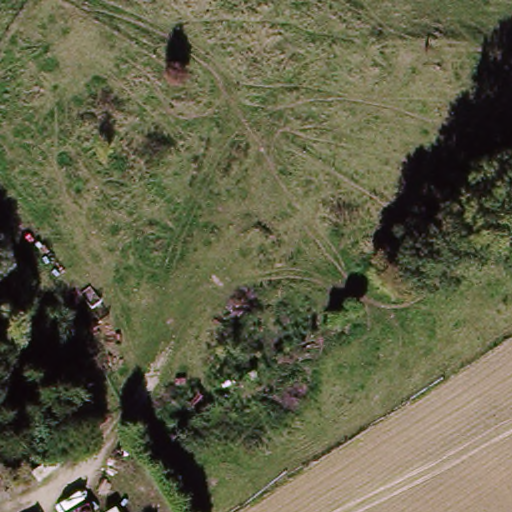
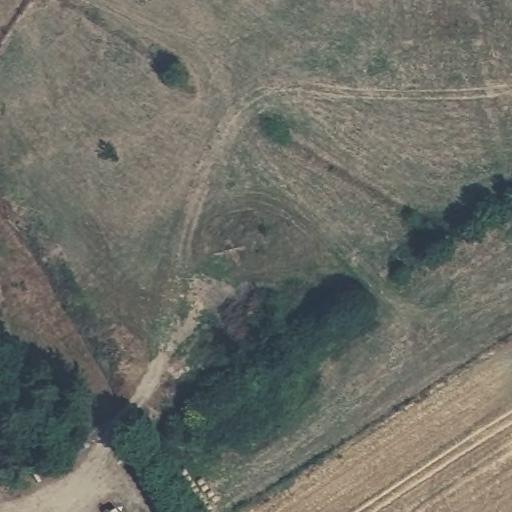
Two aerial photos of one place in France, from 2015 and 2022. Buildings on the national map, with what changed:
[]

